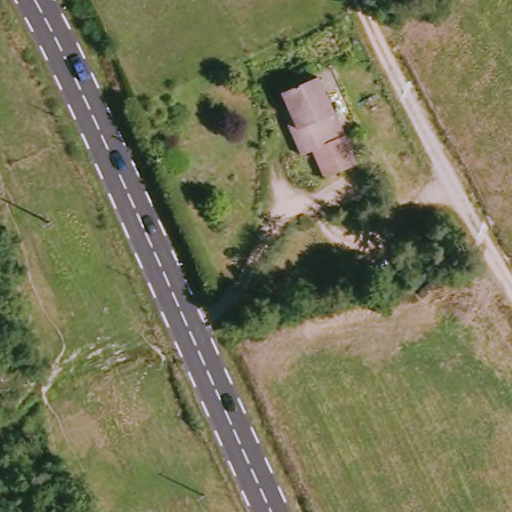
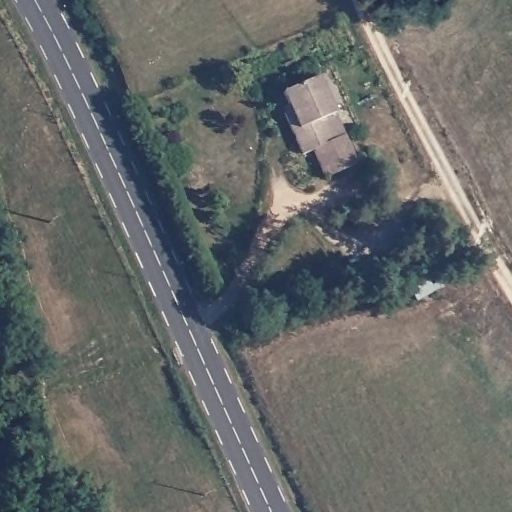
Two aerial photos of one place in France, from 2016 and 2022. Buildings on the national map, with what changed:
unchanged [(319,80),(361,165),(327,181),(315,154),(303,158),(283,115),(289,111),(285,98),(319,80)]

